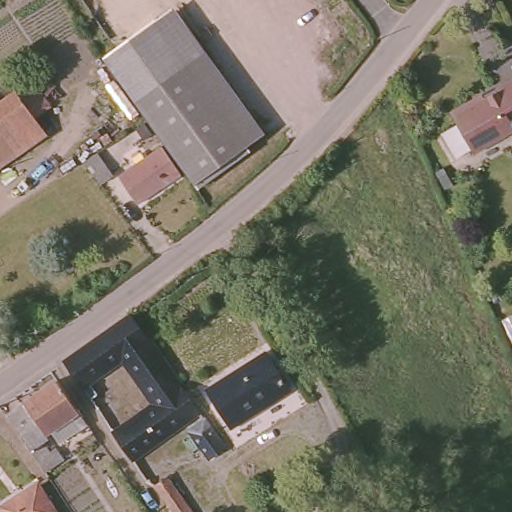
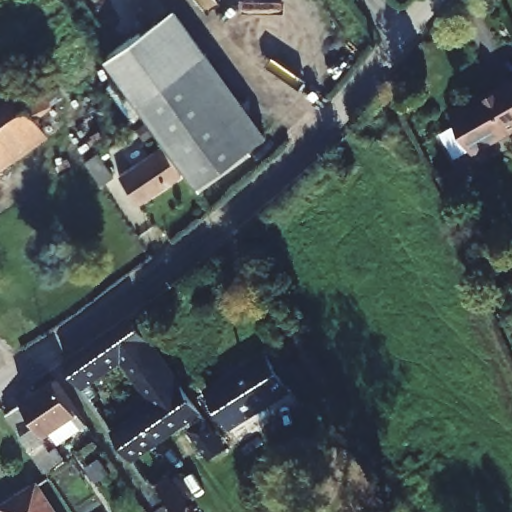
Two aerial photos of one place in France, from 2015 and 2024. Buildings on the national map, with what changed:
unchanged [(185,15),(272,144),(253,157),(166,29),(185,15)]
unchanged [(112,65),(166,29),(253,157),(199,194),(112,65)]
unchanged [(474,104),(512,84),(512,134),(474,155),(472,151),(457,159),(443,133),(458,125),(450,109),(470,99),(474,104)]
unchanged [(27,85),(47,112),(37,119),(44,131),(20,148),(0,119),(0,105),(27,85)]
unchanged [(0,162),(0,119),(20,148),(0,162)]
unchanged [(145,217),(136,203),(128,189),(170,159),(180,173),(188,186),(145,217)]
unchanged [(79,382),(65,362),(79,351),(89,343),(127,315),(142,336),(146,342),(167,373),(168,374),(165,377),(177,395),(197,420),(193,422),(200,431),(211,447),(201,453),(184,429),(187,427),(181,419),(127,457),(122,448),(114,434),(157,401),(122,352),(93,372),(79,382)]
unchanged [(262,350),(282,385),(224,425),(202,390),(262,350)]
unchanged [(58,433),(54,436),(64,451),(68,449),(73,457),(55,470),(39,444),(19,416),(67,382),(87,412),(97,427),(67,448),(58,433)]
unchanged [(39,444),(25,454),(37,472),(25,480),(13,461),(3,467),(0,463),(0,419),(14,409),(19,416),(39,444)]
unchanged [(157,489),(171,480),(193,512),(172,512),(157,489)]
unchanged [(34,482),(55,512),(0,512),(0,509),(34,482)]

